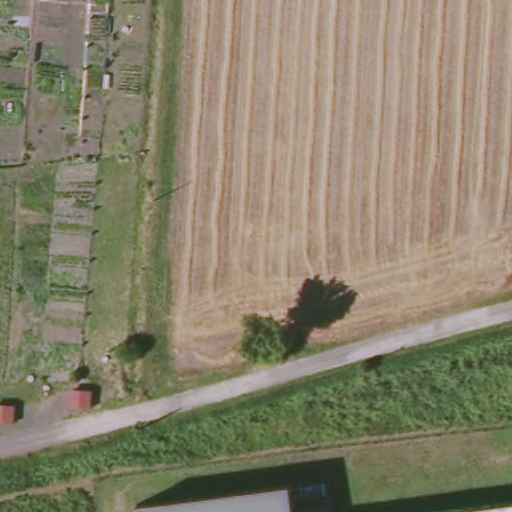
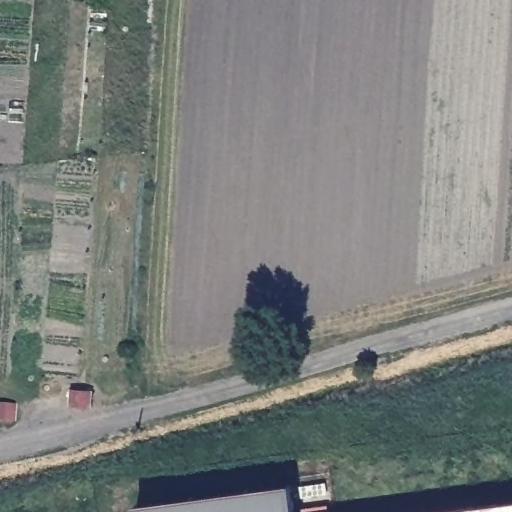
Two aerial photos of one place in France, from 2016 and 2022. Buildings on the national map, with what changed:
unchanged [(139,506),(263,491),(293,487),(296,512),(140,512),(139,506)]
unchanged [(512,503),(512,512),(444,512),(512,503)]
unchanged [(329,505),(330,512),(302,512),(301,509),(329,505)]

